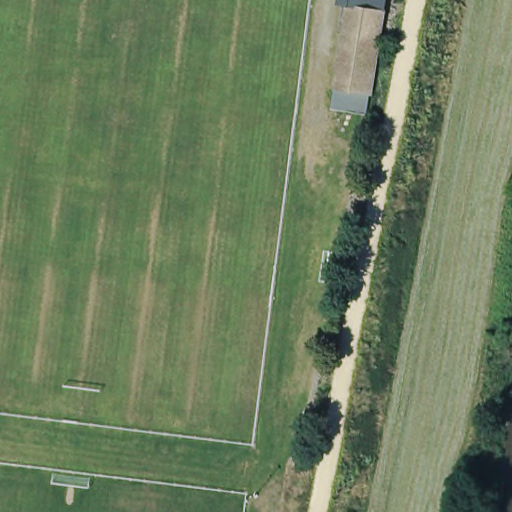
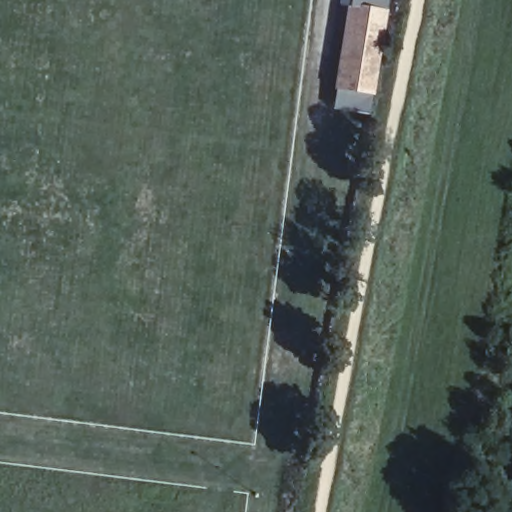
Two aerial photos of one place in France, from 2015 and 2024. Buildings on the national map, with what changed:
unchanged [(340,91),(351,0),(385,0),(375,95),(340,91)]

